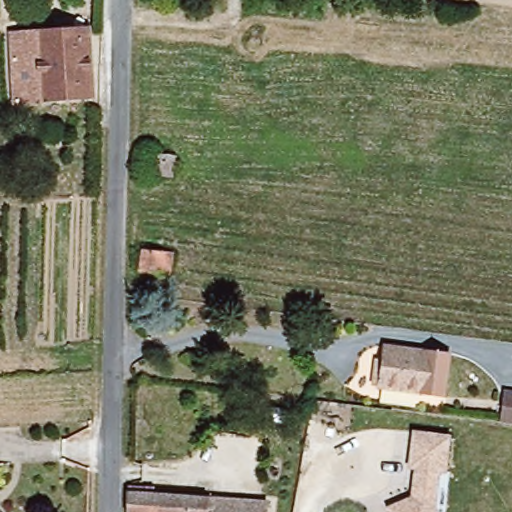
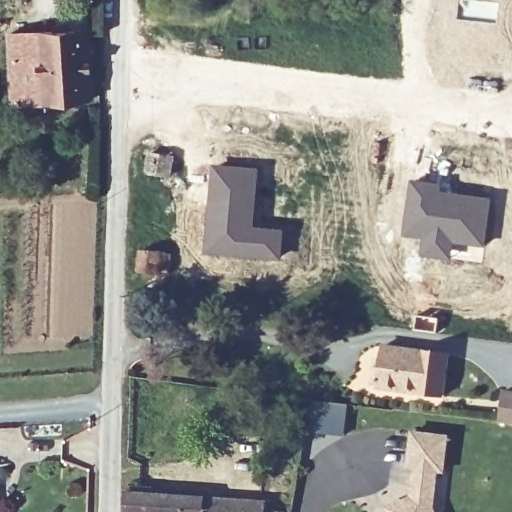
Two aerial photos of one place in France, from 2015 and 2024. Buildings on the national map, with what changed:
unchanged [(36,102),(31,30),(86,27),(92,99),(36,102)]
unchanged [(147,152),(171,154),(171,171),(147,170),(147,152)]
new [(211,165),(260,167),(255,225),(285,229),(282,261),(202,254),(211,165)]
new [(410,179),(444,183),(443,190),(493,197),(484,249),(454,245),(451,261),(418,257),(421,240),(401,236),(410,179)]
unchanged [(140,271),(142,252),(163,255),(173,255),(169,275),(161,273),(140,271)]
unchanged [(443,356),(439,393),(375,386),(381,348),(443,356)]
unchanged [(512,422),(503,421),(506,393),(512,394),(512,422)]
unchanged [(383,504),(408,495),(411,468),(405,467),(407,431),(449,434),(446,475),(437,475),(435,510),(436,512),(385,512),(383,504)]
unchanged [(135,490),(161,491),(160,498),(269,506),(269,512),(134,512),(135,490)]

